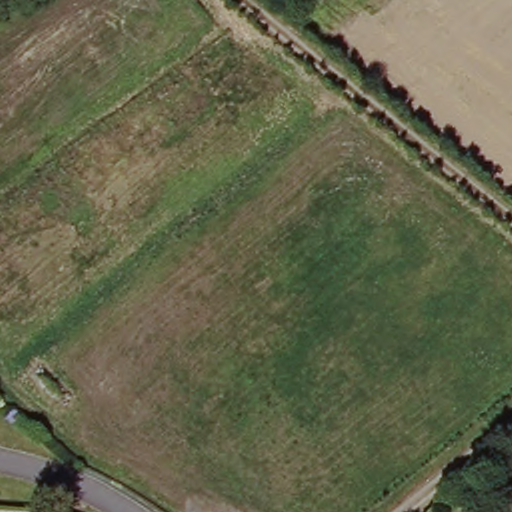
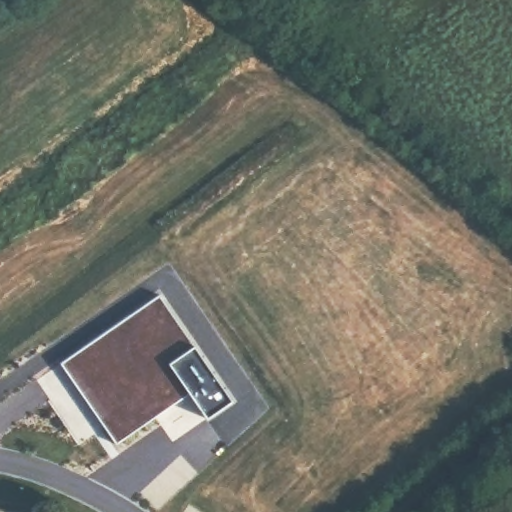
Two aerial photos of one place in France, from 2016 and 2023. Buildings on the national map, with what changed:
new [(158,292),(230,399),(209,419),(186,394),(116,444),(59,357),(158,292)]

